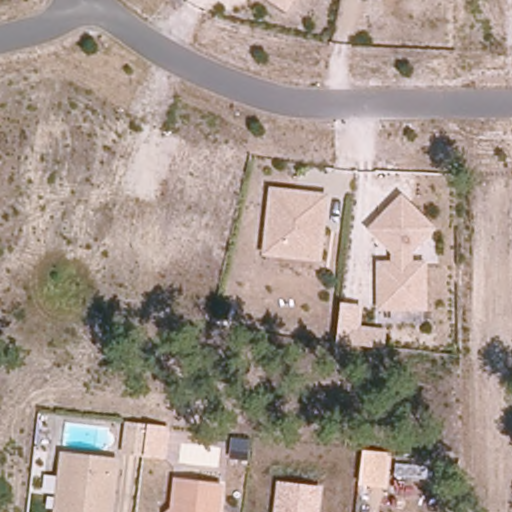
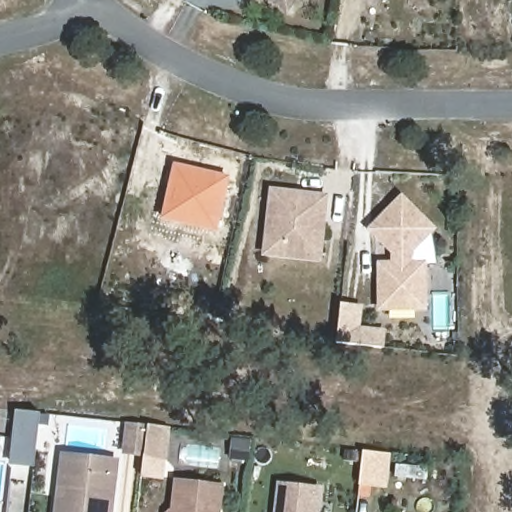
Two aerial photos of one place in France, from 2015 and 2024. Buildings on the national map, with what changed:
unchanged [(295,0),(287,12),(268,0),(295,0)]
new [(231,176),(217,233),(161,219),(173,162),(231,176)]
unchanged [(320,262),(261,256),(269,186),(326,192),(320,262)]
unchanged [(413,251),(413,260),(426,259),(426,310),(377,310),(376,261),(392,260),(391,251),(366,229),(400,192),(435,228),(413,251)]
unchanged [(385,328),(384,350),(334,344),(338,301),(362,305),(360,325),(385,328)]
new [(21,408),(43,411),(37,463),(15,461),(21,408)]
unchanged [(164,460),(118,455),(123,421),(171,427),(164,460)]
unchanged [(387,488),(356,485),(361,449),(392,453),(387,488)]
unchanged [(57,480),(60,462),(113,469),(110,487),(107,512),(53,512),(57,480)]
unchanged [(277,480),(322,486),(318,512),(273,512),(277,480)]
unchanged [(173,484),(219,490),(216,512),(169,512),(173,484)]

